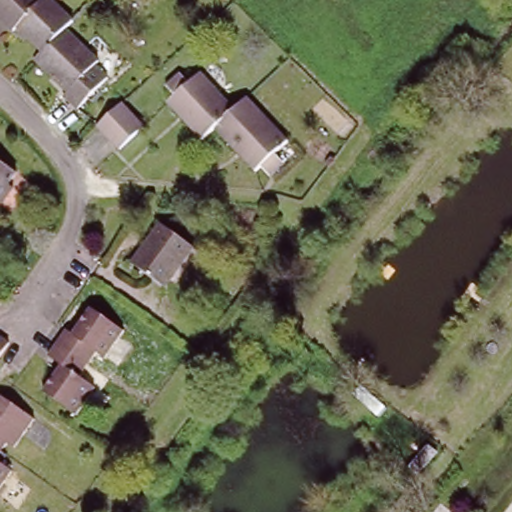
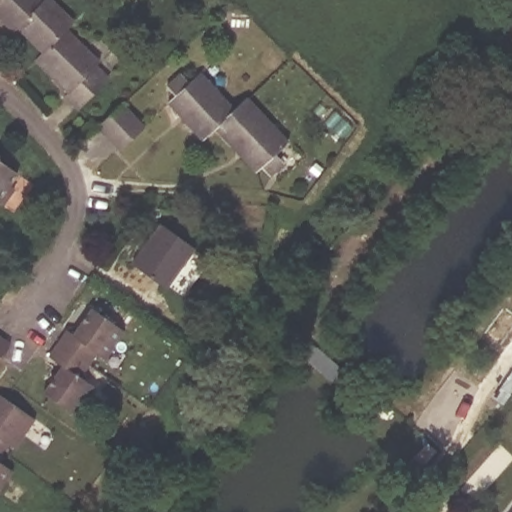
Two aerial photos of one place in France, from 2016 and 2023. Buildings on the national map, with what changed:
unchanged [(65,30),(45,50),(17,25),(14,28),(2,16),(0,15),(0,0),(49,0),(72,24),(65,30)]
unchanged [(38,58),(45,50),(65,30),(100,65),(97,68),(110,80),(82,109),(70,98),(75,93),(66,84),(57,75),(38,58)]
unchanged [(194,88),(206,78),(235,113),(248,101),(285,146),(272,159),(278,167),(267,177),(259,168),(255,172),(216,129),(205,139),(173,104),(181,98),(172,88),(185,77),(194,88)]
unchanged [(140,127),(117,148),(98,126),(122,106),(140,127)]
unchanged [(7,182),(11,184),(0,200),(0,158),(15,169),(7,182)]
unchanged [(197,249),(168,284),(135,258),(163,222),(197,249)]
unchanged [(124,333),(105,358),(98,352),(90,363),(80,376),(97,388),(77,416),(45,393),(65,366),(50,356),(67,333),(73,337),(93,309),(124,333)]
unchanged [(0,361),(0,335),(12,346),(0,361)]
unchanged [(10,443),(0,456),(0,393),(36,420),(15,448),(10,443)]
unchanged [(0,461),(13,472),(0,489),(0,461)]

